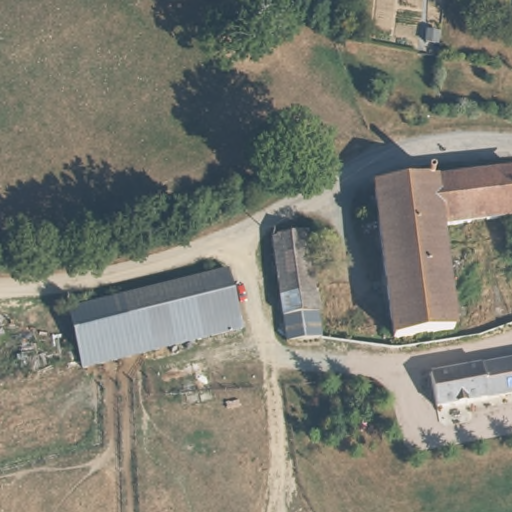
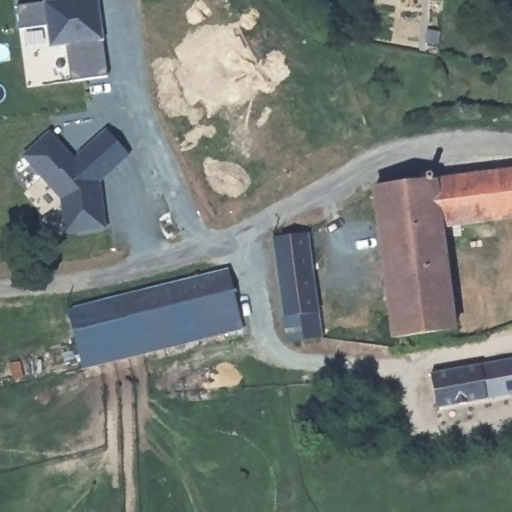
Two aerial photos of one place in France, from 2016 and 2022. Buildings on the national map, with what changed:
new [(43,1),(50,0),(98,0),(104,41),(103,41),(108,76),(70,81),(66,47),(52,49),(48,25),(19,30),(16,6),(43,2),(43,1)]
new [(61,215),(58,196),(46,184),(20,153),(47,130),(71,157),(105,129),(124,151),(95,176),(97,190),(104,224),(76,229),(64,230),(61,215)]
unchanged [(455,327),(392,332),(383,180),(427,176),(427,168),(437,169),(438,175),(512,170),(512,221),(446,226),(455,327)]
unchanged [(315,232),(321,338),(284,340),(278,235),(315,232)]
unchanged [(68,305),(229,268),(241,326),(82,364),(68,305)]
unchanged [(429,373),(512,358),(512,392),(434,406),(429,373)]
unchanged [(400,446),(399,433),(410,432),(411,444),(400,446)]

